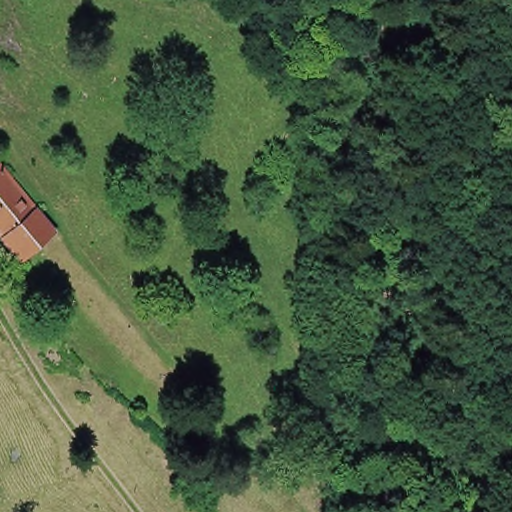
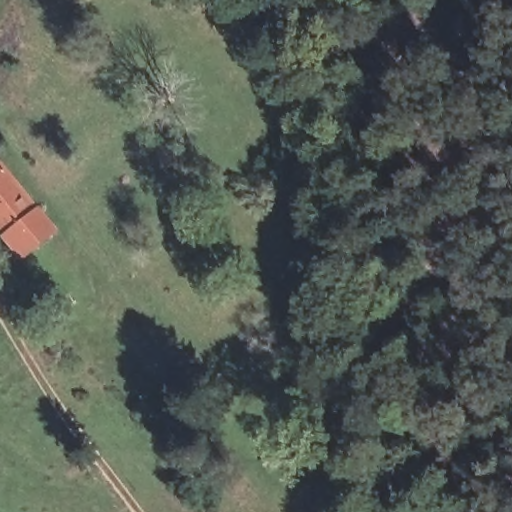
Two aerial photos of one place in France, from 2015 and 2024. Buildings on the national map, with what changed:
unchanged [(0,243),(0,171),(9,182),(50,234),(14,261),(0,243)]

